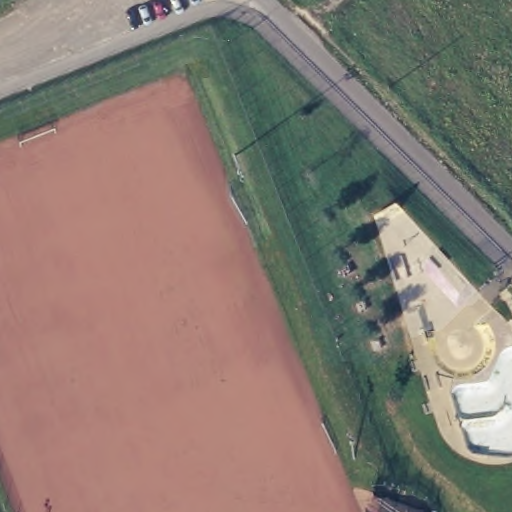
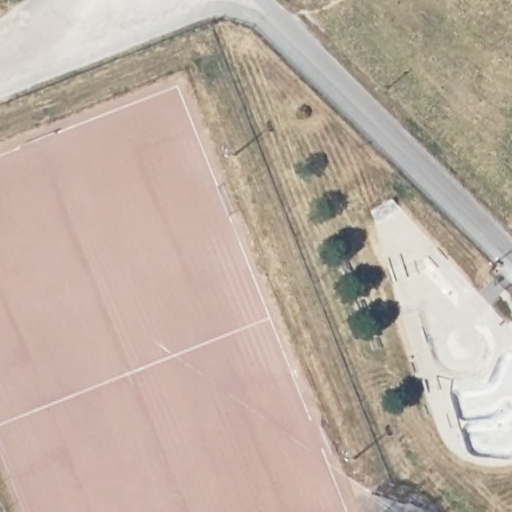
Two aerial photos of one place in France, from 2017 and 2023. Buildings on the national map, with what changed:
[]

